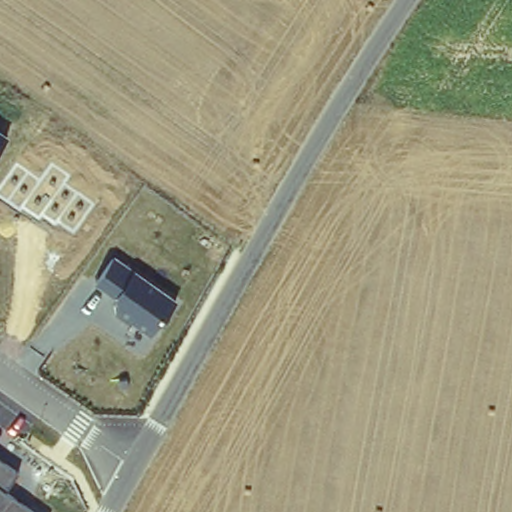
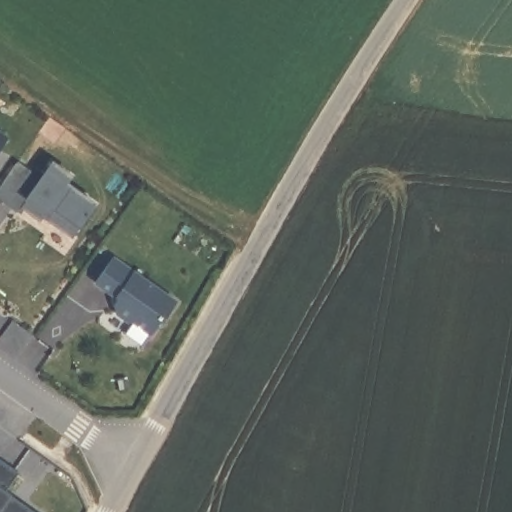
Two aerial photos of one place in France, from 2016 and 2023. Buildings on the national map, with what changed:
unchanged [(0,133),(7,138),(0,147),(0,133)]
new [(41,182),(52,165),(69,176),(64,185),(95,205),(75,233),(58,221),(56,225),(42,215),(39,220),(22,208),(20,212),(0,198),(0,187),(15,164),(41,182)]
unchanged [(150,335),(116,315),(114,296),(92,282),(111,255),(176,300),(150,335)]
unchanged [(37,512),(0,512),(0,457),(19,468),(7,489),(37,512)]

